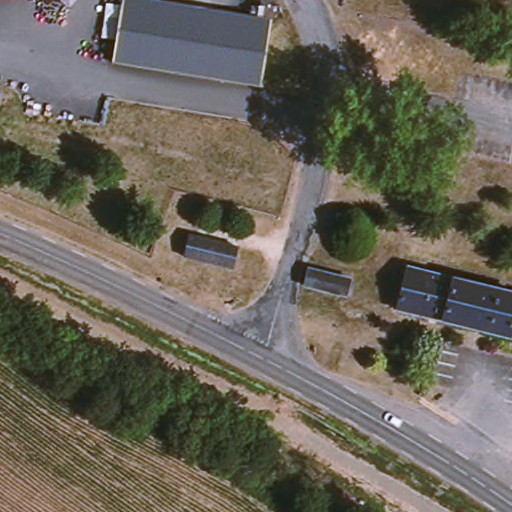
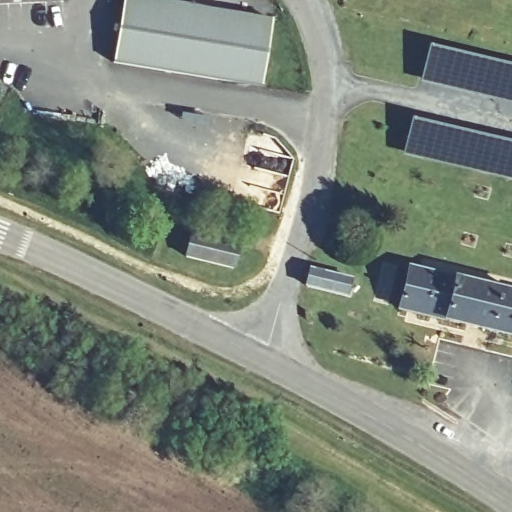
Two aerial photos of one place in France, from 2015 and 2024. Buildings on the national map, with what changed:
unchanged [(139,0),(270,21),(259,91),(109,66),(120,0),(139,0)]
new [(430,46),(512,66),(512,100),(425,80),(430,46)]
new [(412,119),(512,142),(512,178),(404,151),(412,119)]
unchanged [(355,216),(352,228),(337,225),(340,212),(355,216)]
unchanged [(186,256),(187,250),(192,232),(239,244),(234,268),(209,262),(186,256)]
unchanged [(340,249),(332,247),(335,238),(342,240),(340,249)]
unchanged [(410,266),(512,292),(512,336),(399,310),(410,266)]
unchanged [(347,295),(309,288),(314,270),(350,278),(347,295)]
demolished [(442,512),(404,512),(397,508),(410,485),(445,506),(442,512)]

